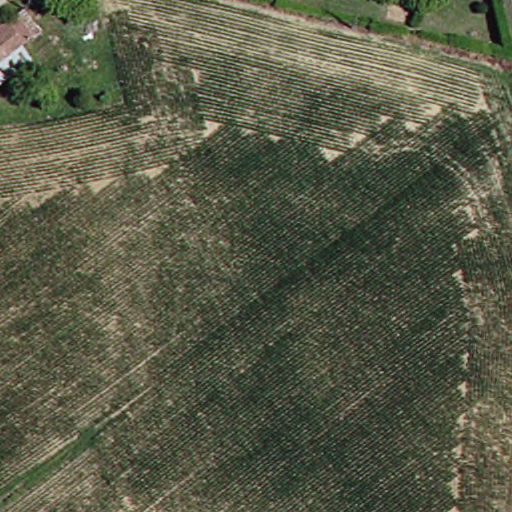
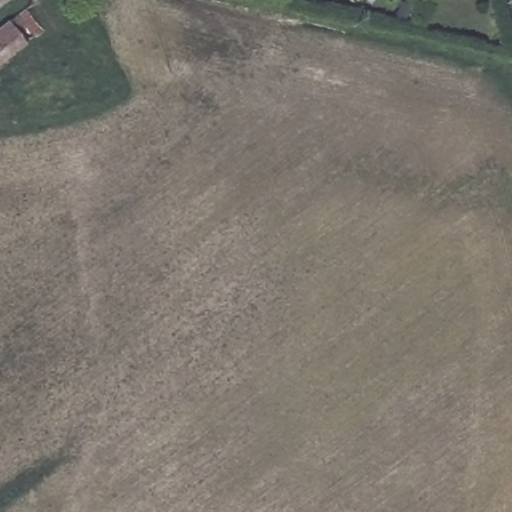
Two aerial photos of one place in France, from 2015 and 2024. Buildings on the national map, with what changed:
unchanged [(29,34),(0,56),(0,24),(16,13),(29,34)]

